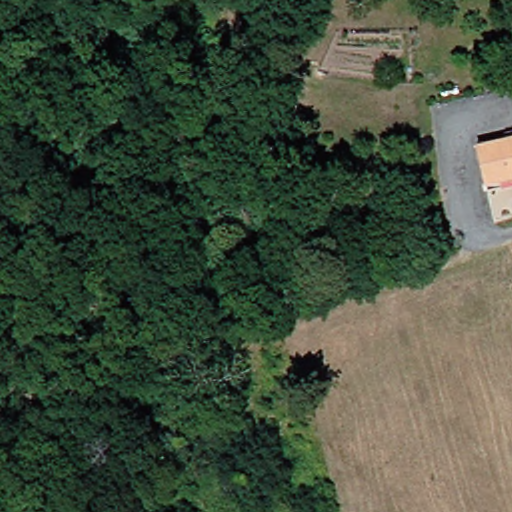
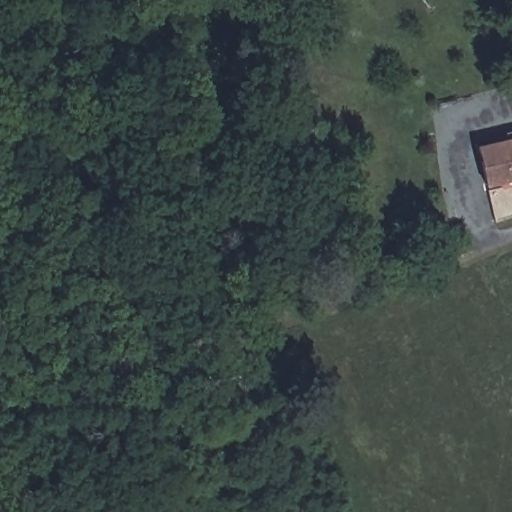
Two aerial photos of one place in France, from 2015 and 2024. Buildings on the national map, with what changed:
unchanged [(294,128),(251,128),(251,97),(292,96),(294,128)]
unchanged [(512,182),(484,189),(473,151),(512,142),(512,182)]

